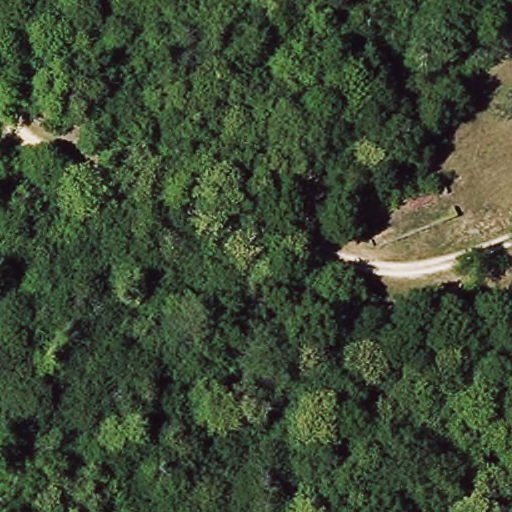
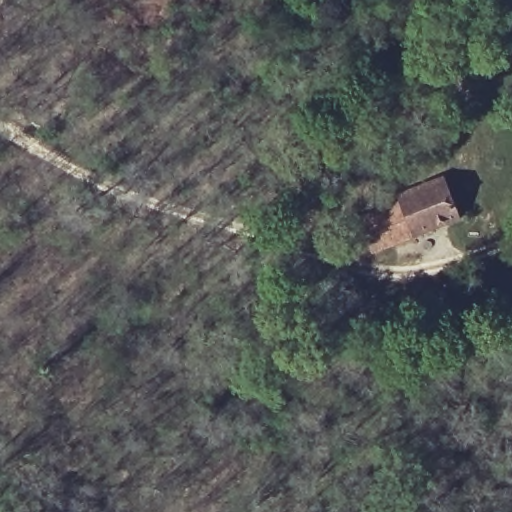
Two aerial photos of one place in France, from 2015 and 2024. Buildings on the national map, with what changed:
unchanged [(284,176),(298,164),(305,174),(290,185),(284,176)]
new [(442,172),(462,219),(412,239),(394,193),(442,172)]
demolished [(450,221),(372,253),(359,222),(437,189),(450,221)]
new [(394,193),(412,239),(372,256),(352,210),(394,193)]

